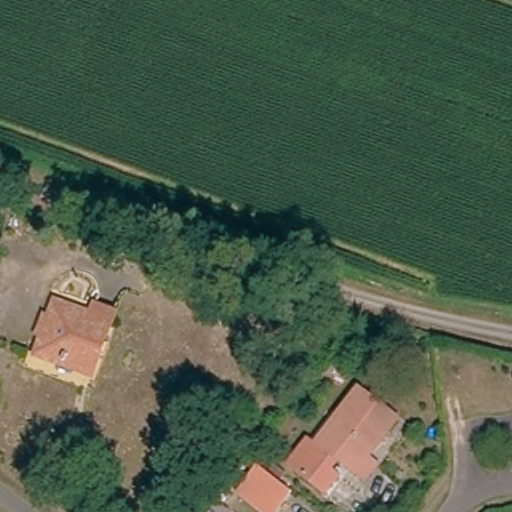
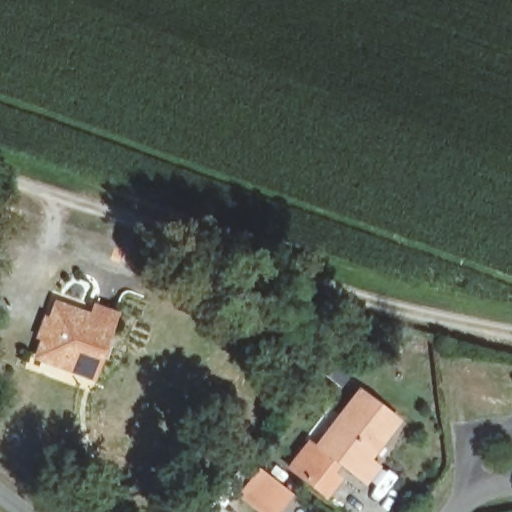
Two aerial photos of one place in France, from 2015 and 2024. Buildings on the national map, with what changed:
unchanged [(34,352),(41,336),(32,332),(40,314),(48,318),(55,303),(88,318),(95,305),(115,314),(108,328),(86,376),(34,352)]
unchanged [(394,418),(364,456),(376,465),(360,485),(332,464),(324,475),(332,481),(317,501),(278,471),(296,447),(309,457),(339,419),(333,415),(354,387),(394,418)]
unchanged [(272,512),(258,512),(231,491),(252,464),(288,492),(272,512)]

